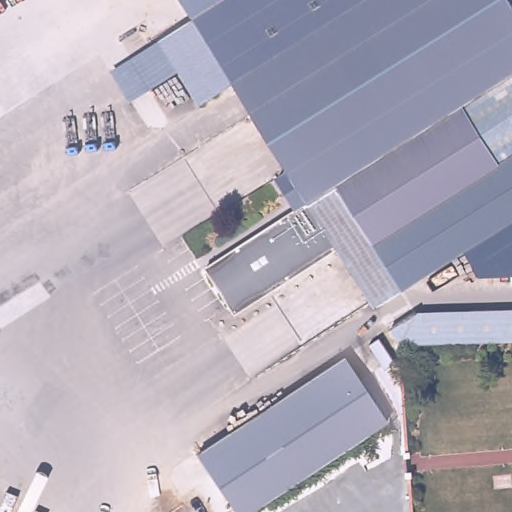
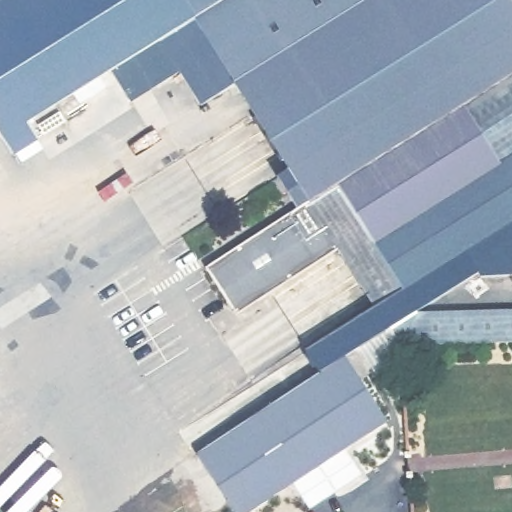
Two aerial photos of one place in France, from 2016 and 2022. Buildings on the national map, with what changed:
new [(111,71),(27,123),(39,142),(16,155),(0,130),(0,0),(181,0),(193,20),(158,42),(178,74),(131,102),(111,71)]
unchanged [(237,113),(248,106),(235,85),(199,108),(158,42),(193,20),(225,0),(511,0),(512,1),(512,75),(295,212),(237,113)]
unchanged [(181,0),(225,0),(193,20),(181,0)]
demolished [(167,72),(0,175),(0,117),(143,28),(167,72)]
unchanged [(295,212),(512,75),(512,224),(375,310),(339,250),(234,315),(205,269),(295,212)]
unchanged [(481,277),(478,273),(416,312),(390,329),(320,373),(306,351),(373,307),(375,310),(478,246),(512,224),(512,275),(481,277)]
unchanged [(512,309),(512,343),(399,347),(390,329),(416,312),(512,309)]
unchanged [(259,512),(236,512),(201,459),(346,360),(388,423),(259,512)]

